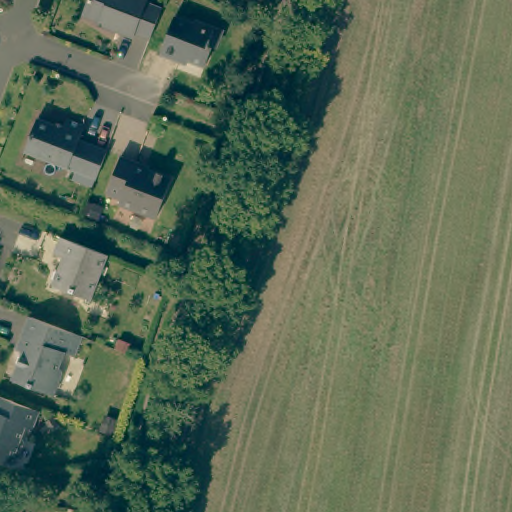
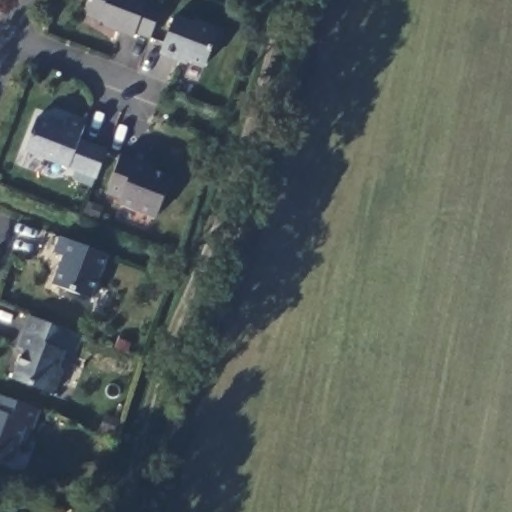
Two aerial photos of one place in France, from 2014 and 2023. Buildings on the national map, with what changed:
unchanged [(105,24),(82,15),(88,0),(148,0),(147,2),(162,8),(150,39),(135,33),(134,38),(104,26),(105,24)]
unchanged [(193,24),(195,20),(222,31),(216,48),(212,46),(205,66),(189,60),(187,64),(160,54),(175,17),(193,24)]
unchanged [(25,156),(37,124),(63,134),(66,124),(85,131),(79,145),(107,156),(96,184),(25,156)]
unchanged [(136,162),(135,164),(171,178),(156,218),(120,204),(121,199),(106,194),(121,156),(136,162)]
unchanged [(69,262),(59,258),(65,242),(113,260),(96,305),(58,290),(69,262)]
unchanged [(24,352),(17,349),(30,317),(82,337),(74,357),(65,353),(60,366),(62,372),(54,395),(13,379),(24,352)]
unchanged [(32,429),(25,427),(12,461),(6,464),(0,461),(0,396),(39,411),(32,429)]

